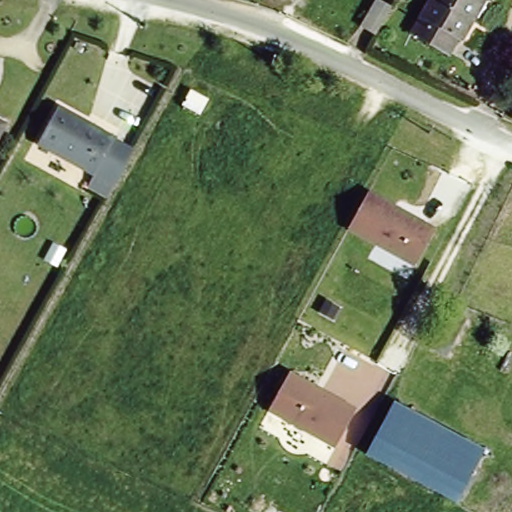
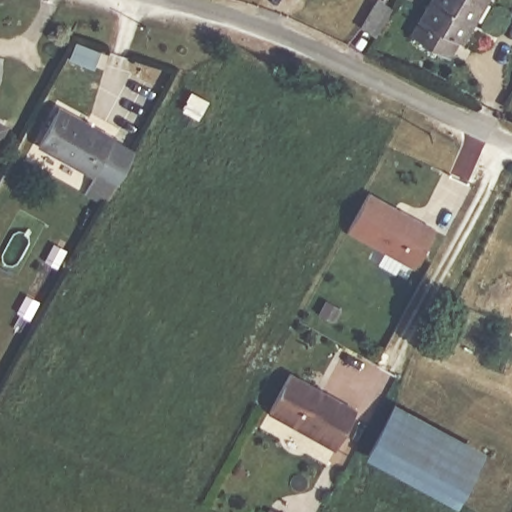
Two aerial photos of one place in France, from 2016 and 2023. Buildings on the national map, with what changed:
unchanged [(465,34),(460,32),(452,50),(417,32),(433,0),(482,0),(465,34)]
unchanged [(377,42),(365,35),(382,4),(394,10),(377,42)]
unchanged [(112,136),(111,139),(132,151),(114,184),(92,172),(92,174),(36,144),(57,106),(112,136)]
unchanged [(430,230),(410,266),(344,230),(364,192),(430,230)]
unchanged [(453,311),(467,319),(447,357),(432,349),(453,311)]
unchanged [(357,409),(333,452),(265,415),(289,372),(357,409)]
unchanged [(455,498),(368,450),(394,402),(482,448),(456,498),(455,498)]

